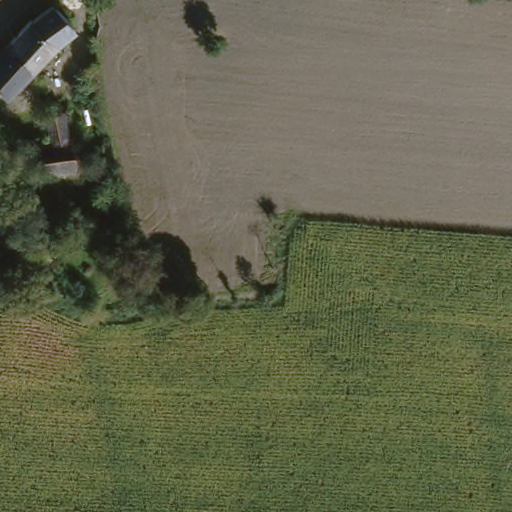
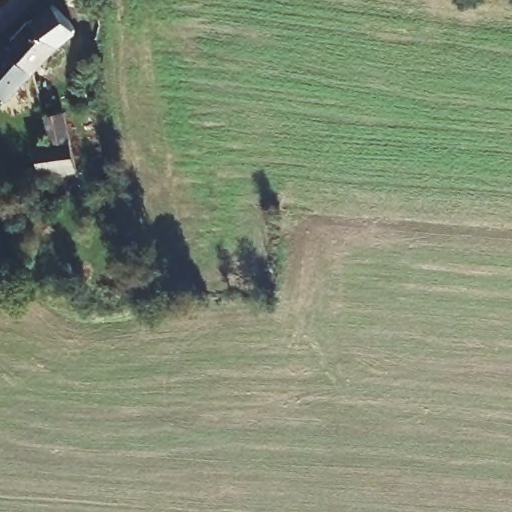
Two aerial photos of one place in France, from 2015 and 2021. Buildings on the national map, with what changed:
unchanged [(76,30),(32,74),(5,45),(9,40),(30,19),(34,21),(51,6),(76,30)]
unchanged [(32,74),(6,100),(0,95),(0,51),(5,45),(32,74)]
unchanged [(32,153),(29,134),(42,130),(39,117),(60,113),(68,146),(73,172),(54,174),(37,175),(32,153)]

